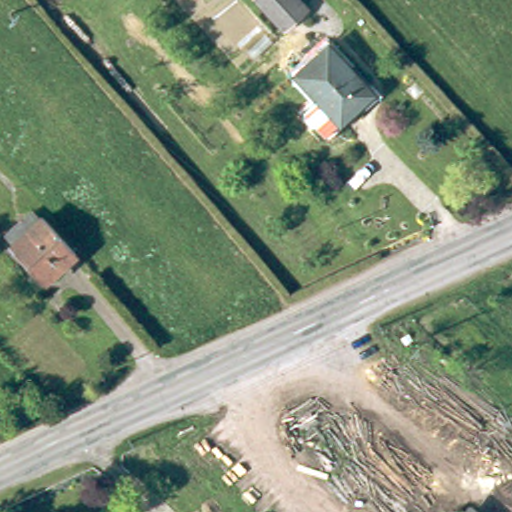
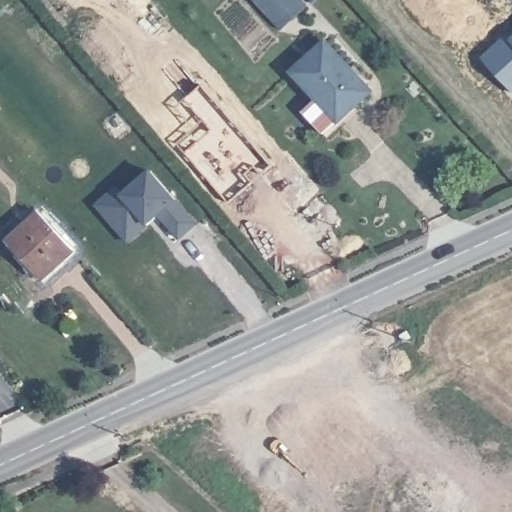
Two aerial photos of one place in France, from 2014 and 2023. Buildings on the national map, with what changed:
unchanged [(305,4),(283,21),(263,0),(301,0),(305,4)]
unchanged [(375,86),(330,122),(309,100),(323,89),(301,66),(333,40),(375,86)]
new [(127,243),(94,206),(115,185),(124,194),(150,170),(177,201),(197,226),(180,241),(159,218),(148,227),(127,243)]
unchanged [(76,251),(48,275),(16,241),(8,233),(22,218),(32,228),(45,216),(76,251)]
unchanged [(453,512),(451,512),(452,511),(453,512)]

